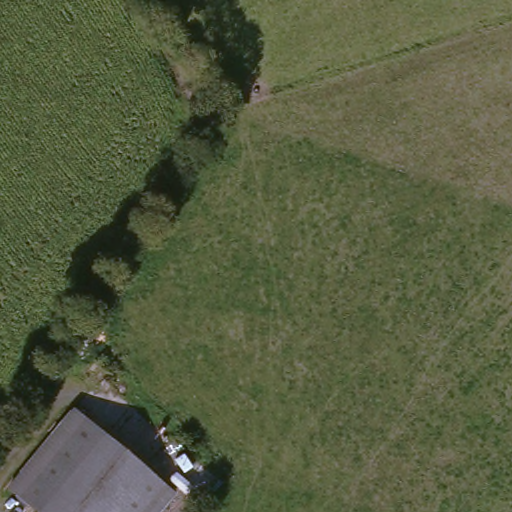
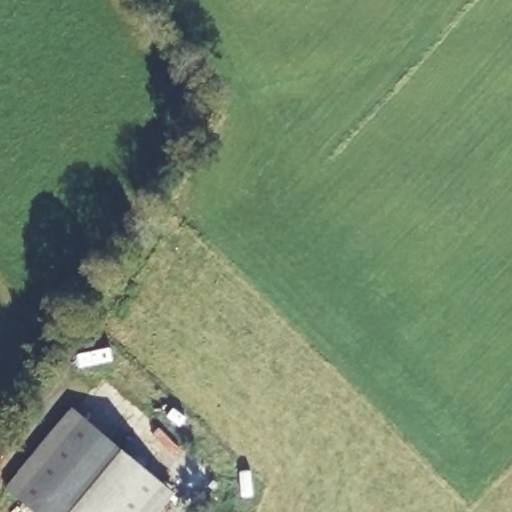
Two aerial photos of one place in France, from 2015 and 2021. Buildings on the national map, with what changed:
unchanged [(67,418),(170,503),(162,512),(20,512),(2,497),(67,418)]

